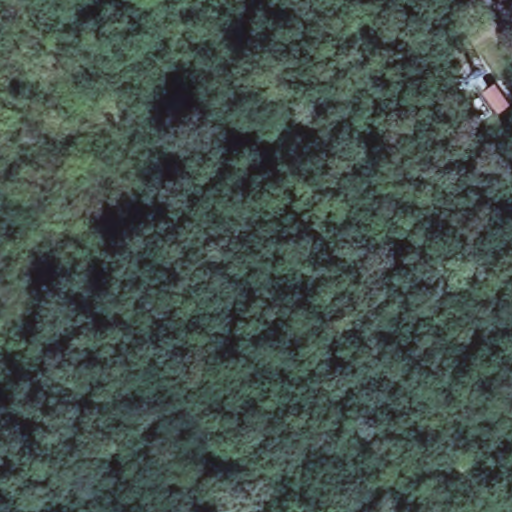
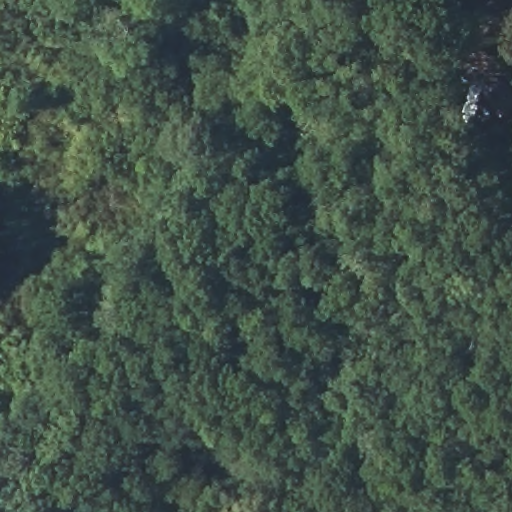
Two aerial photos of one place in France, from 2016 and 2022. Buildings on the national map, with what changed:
unchanged [(500,92),(490,99),(473,75),(484,67),(500,92)]

